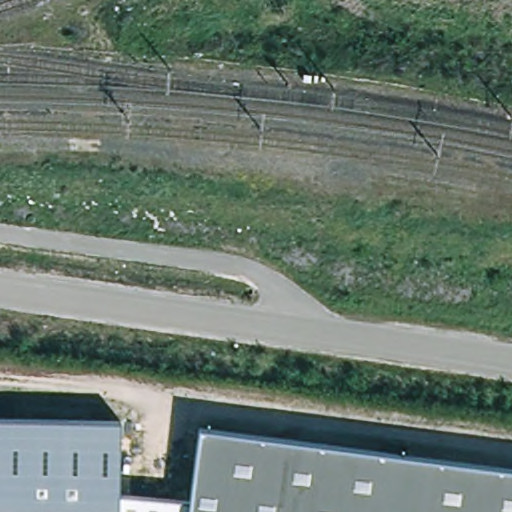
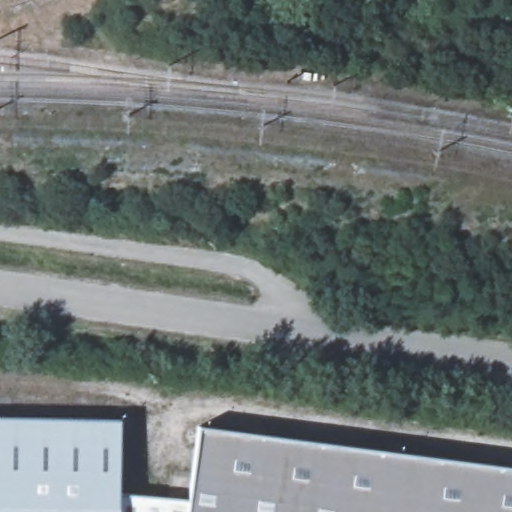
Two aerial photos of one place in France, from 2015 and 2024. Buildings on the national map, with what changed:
unchanged [(122,418),(121,436),(120,480),(16,512),(0,512),(0,415),(92,417),(122,418)]
unchanged [(147,493),(187,494),(189,494),(200,421),(512,465),(512,512),(118,512),(119,492),(147,493)]
unchanged [(118,512),(16,512),(120,480),(119,492),(118,512)]

